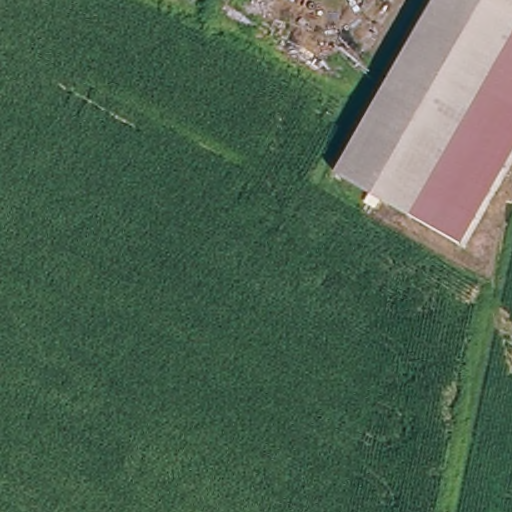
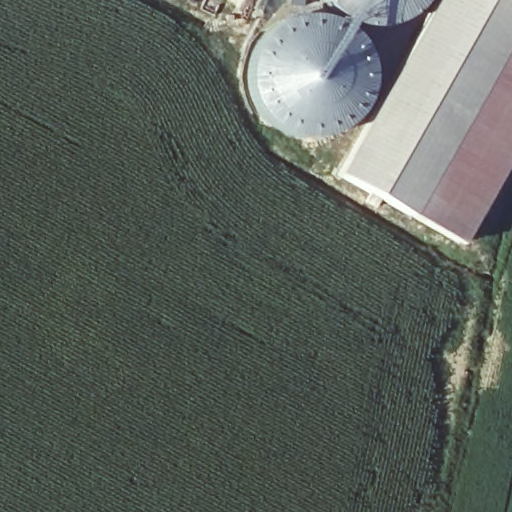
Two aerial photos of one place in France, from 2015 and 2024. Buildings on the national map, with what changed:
new [(421,5),(412,14),(402,20),(390,25),(379,27),(367,26),(355,24),(344,19),(334,12),(326,3),(324,0),(424,0),(421,5)]
unchanged [(343,178),(443,0),(512,0),(512,50),(417,220),(343,178)]
new [(257,42),(268,30),(287,18),(308,15),(331,20),(348,29),(360,43),(369,63),(371,80),(367,96),(358,119),(341,130),(320,139),(303,140),(283,134),(264,121),(256,112),(248,97),(245,76),(247,64),(251,54),(257,42)]
unchanged [(462,246),(417,220),(512,50),(512,162),(462,246)]

